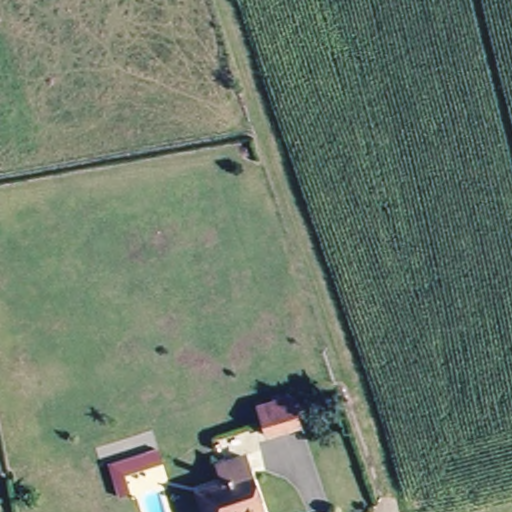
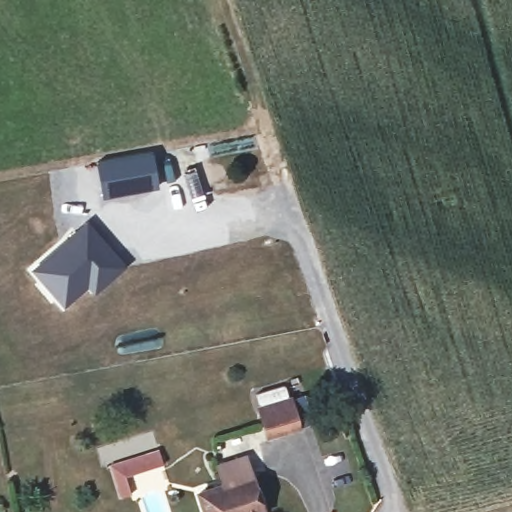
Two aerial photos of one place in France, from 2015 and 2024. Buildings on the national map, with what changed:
new [(154,151),(159,187),(101,198),(95,162),(154,151)]
new [(87,220),(128,266),(92,295),(89,291),(64,309),(30,270),(87,220)]
unchanged [(261,408),(292,400),(293,406),(300,429),(268,437),(263,416),(261,408)]
unchanged [(161,449),(166,466),(130,478),(134,494),(119,498),(110,467),(161,449)]
unchanged [(194,492),(219,485),(212,463),(240,456),(255,512),(253,512),(200,512),(194,492)]

